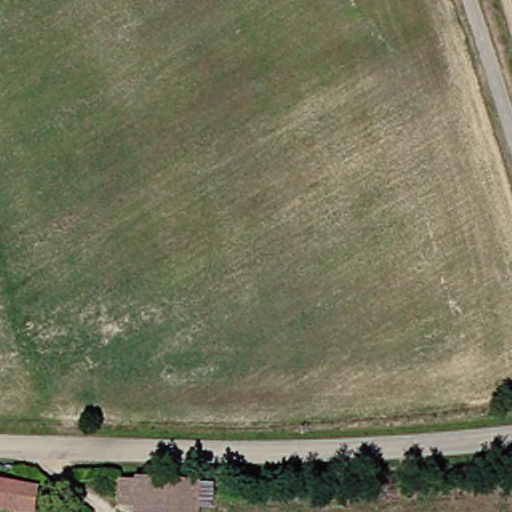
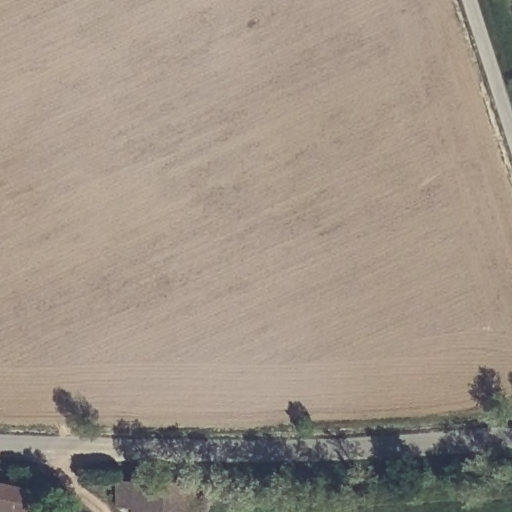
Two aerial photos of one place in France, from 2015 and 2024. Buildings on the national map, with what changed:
unchanged [(0,506),(0,477),(46,482),(41,510),(0,506)]
unchanged [(211,511),(190,510),(190,512),(129,512),(129,505),(116,505),(116,481),(191,481),(190,486),(212,487),(211,511)]

